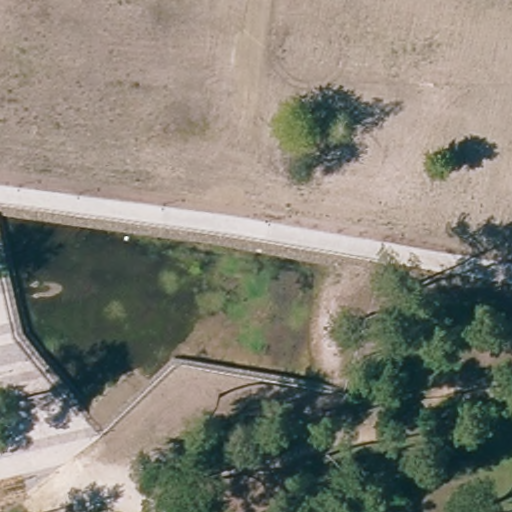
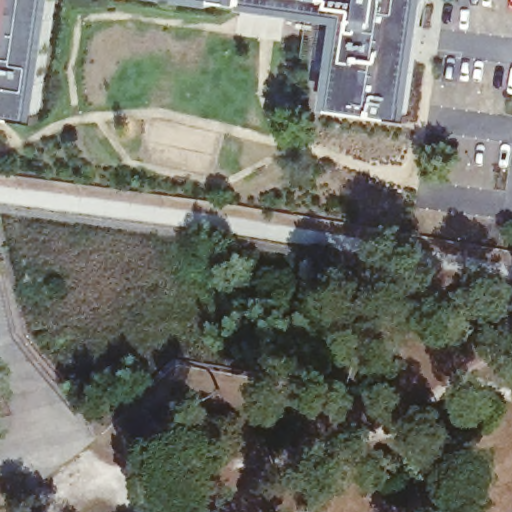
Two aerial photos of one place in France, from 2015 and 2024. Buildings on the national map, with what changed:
new [(40,120),(37,132),(0,127),(0,0),(55,0),(40,120)]
new [(408,120),(323,107),(337,20),(240,2),(222,0),(425,0),(408,120)]

